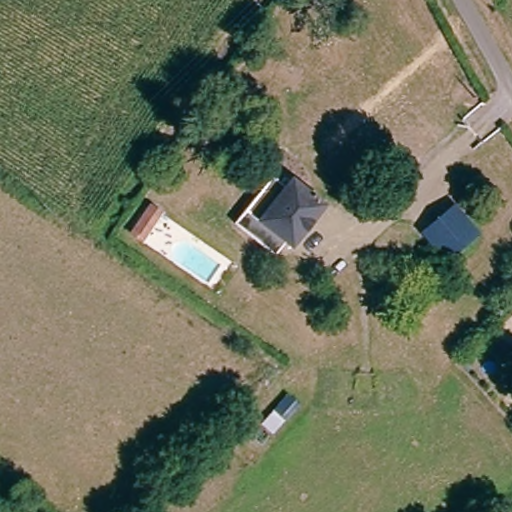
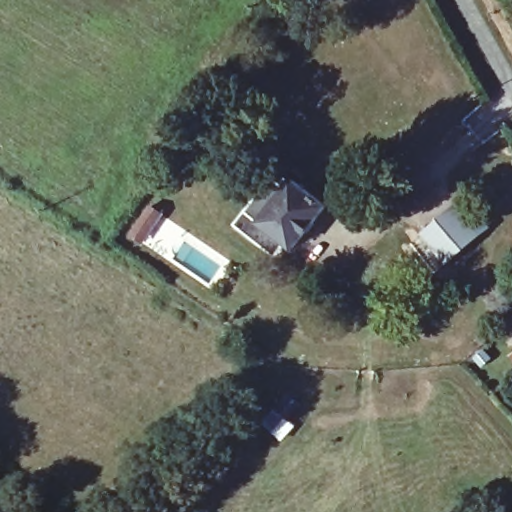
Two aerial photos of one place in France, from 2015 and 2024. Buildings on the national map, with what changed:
unchanged [(239,229),(250,215),(275,181),(282,187),(286,182),(292,187),(294,184),(328,211),(297,251),(290,246),(280,260),(239,229)]
unchanged [(154,204),(169,216),(147,245),(131,236),(154,204)]
unchanged [(430,225),(450,204),(476,233),(443,262),(418,237),(430,225)]

